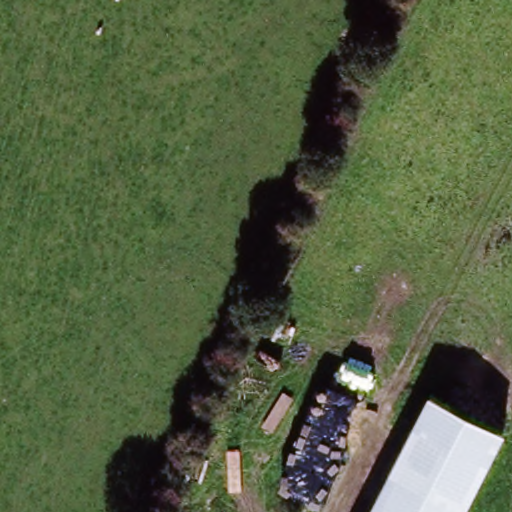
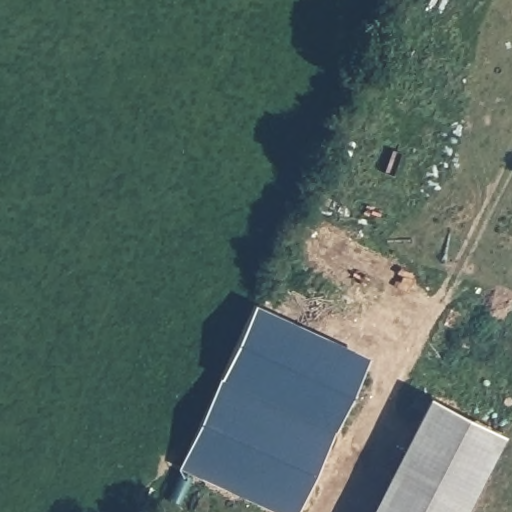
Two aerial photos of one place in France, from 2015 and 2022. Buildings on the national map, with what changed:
new [(371,356),(299,512),(280,512),(180,467),(256,303),(371,356)]
unchanged [(505,432),(464,512),(369,512),(430,393),(505,432)]

